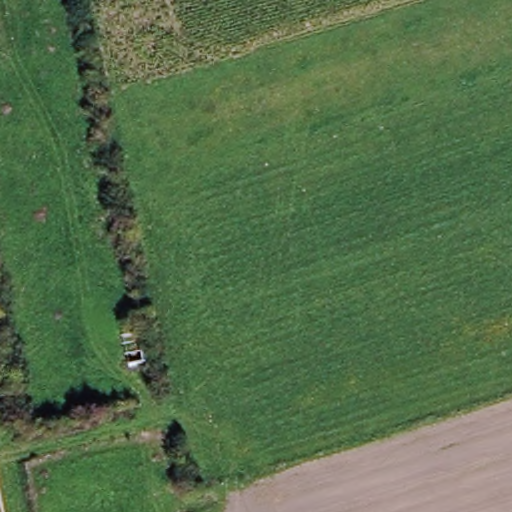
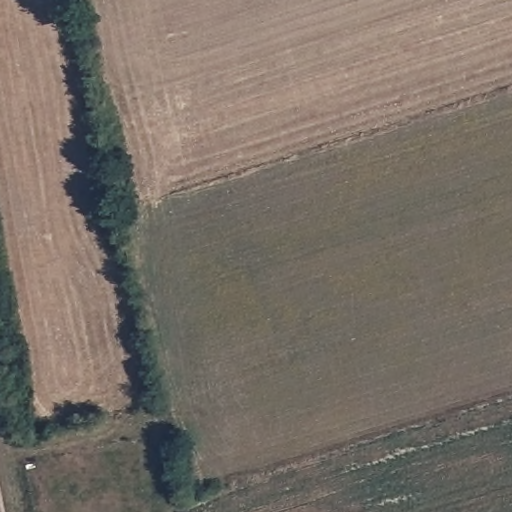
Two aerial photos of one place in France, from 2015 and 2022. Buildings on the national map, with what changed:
unchanged [(140,360),(118,363),(110,331),(132,328),(140,360)]

